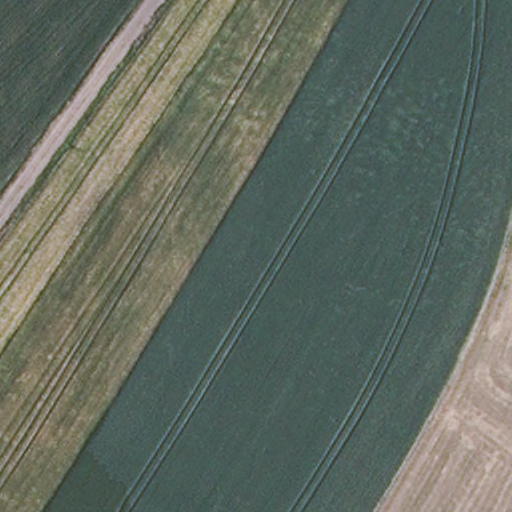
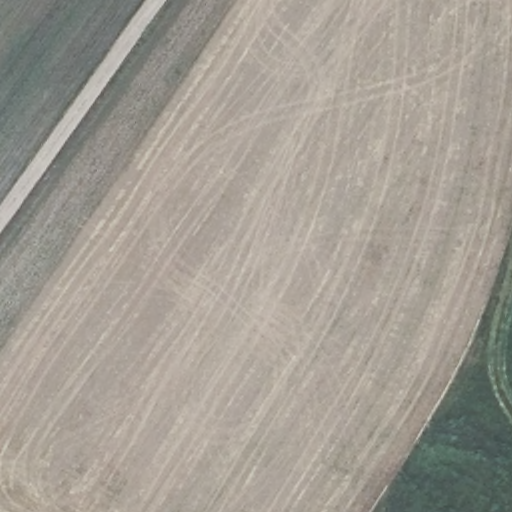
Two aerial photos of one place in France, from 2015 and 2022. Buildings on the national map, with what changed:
[]

